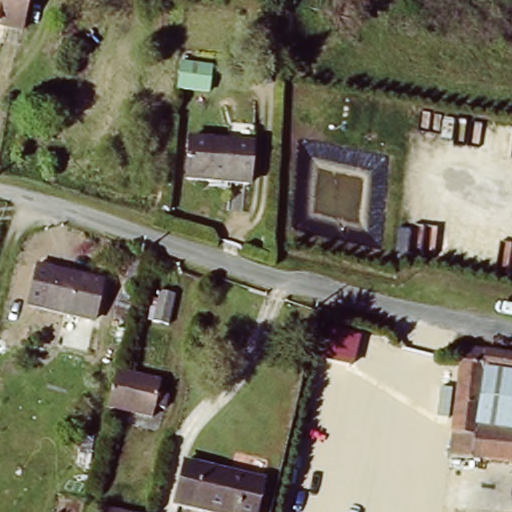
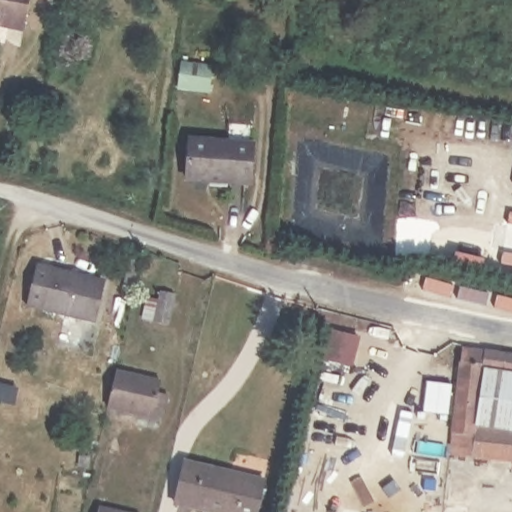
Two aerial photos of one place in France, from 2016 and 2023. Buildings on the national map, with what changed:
unchanged [(31,0),(26,26),(0,20),(0,0),(31,0)]
unchanged [(84,23),(77,50),(59,44),(66,18),(84,23)]
unchanged [(61,85),(59,97),(34,91),(36,80),(61,85)]
unchanged [(253,147),(248,187),(187,180),(191,140),(253,147)]
unchanged [(99,278),(87,319),(23,301),(34,261),(99,278)]
unchanged [(154,325),(161,293),(176,297),(171,328),(154,325)]
unchanged [(475,367),(465,455),(443,452),(456,343),(512,352),(512,373),(475,367)]
unchanged [(104,404),(108,388),(113,367),(153,377),(150,390),(162,392),(158,405),(147,402),(144,414),(104,404)]
unchanged [(475,367),(512,373),(512,460),(465,455),(475,367)]
unchanged [(228,468),(226,477),(258,485),(251,512),(221,512),(174,501),(185,457),(228,468)]

